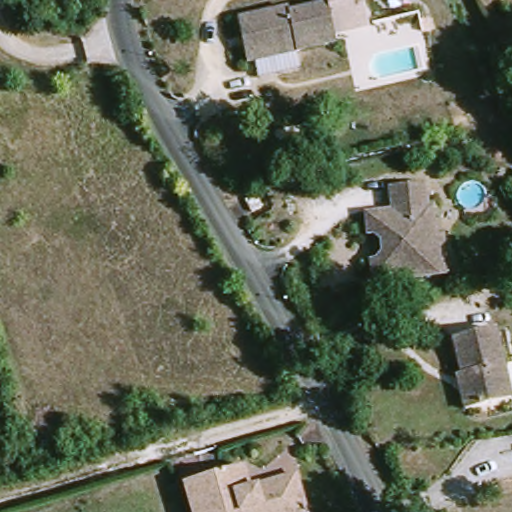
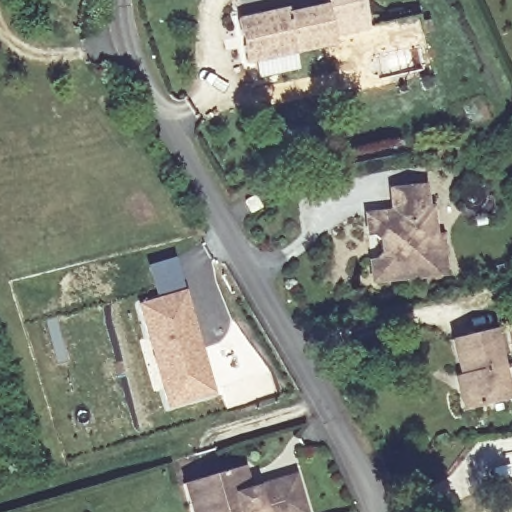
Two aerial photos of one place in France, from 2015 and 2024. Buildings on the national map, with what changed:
unchanged [(327,8),(331,26),(335,44),(326,46),(246,65),(236,23),(287,11),(288,16),(326,8),(327,8)]
unchanged [(371,217),(377,217),(397,215),(394,191),(426,188),(429,221),(424,230),(425,240),(445,236),(449,275),(385,282),(378,283),(371,217)]
unchanged [(261,209),(251,215),(245,205),(254,199),(261,209)]
new [(135,305),(184,290),(215,394),(168,407),(135,305)]
unchanged [(512,402),(466,412),(461,394),(463,386),(452,342),(495,331),(512,402)]
unchanged [(245,471),(252,495),(298,481),(307,512),(212,512),(203,483),(245,471)]
unchanged [(212,512),(193,512),(185,488),(203,483),(212,512)]

